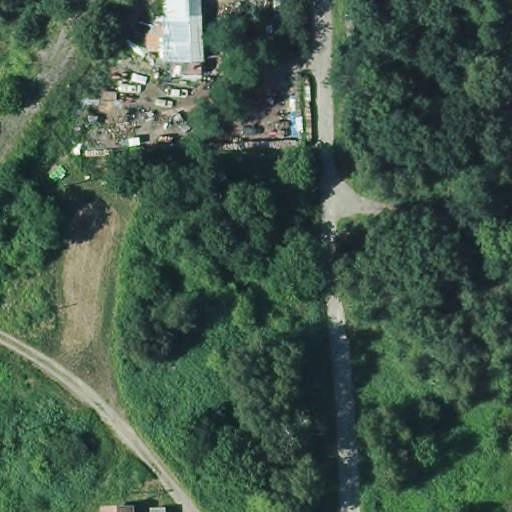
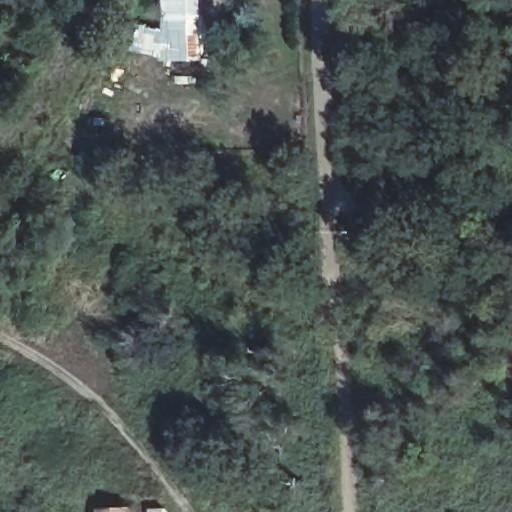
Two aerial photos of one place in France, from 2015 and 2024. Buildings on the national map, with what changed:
unchanged [(215,56),(175,59),(165,0),(206,0),(208,18),(215,56)]

